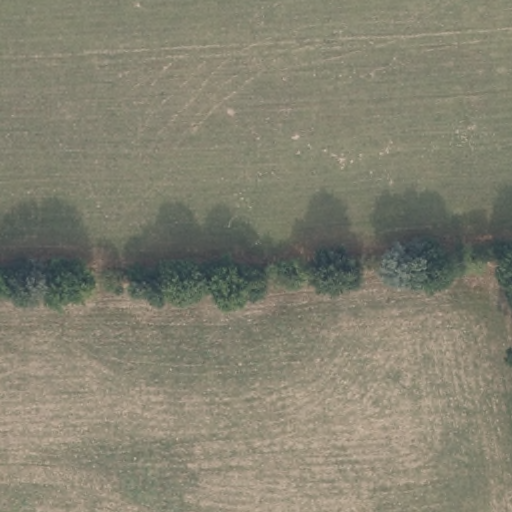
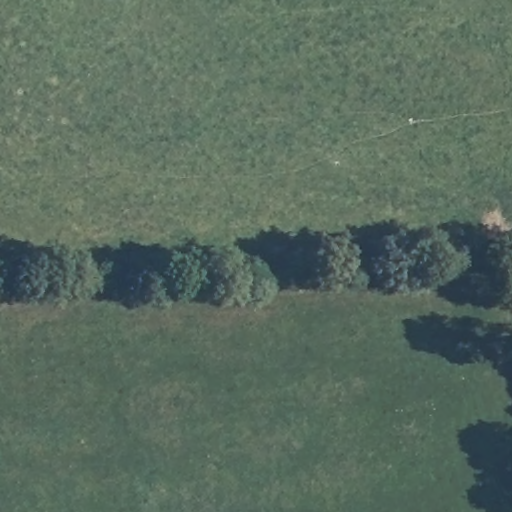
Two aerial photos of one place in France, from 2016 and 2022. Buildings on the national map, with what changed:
[]

